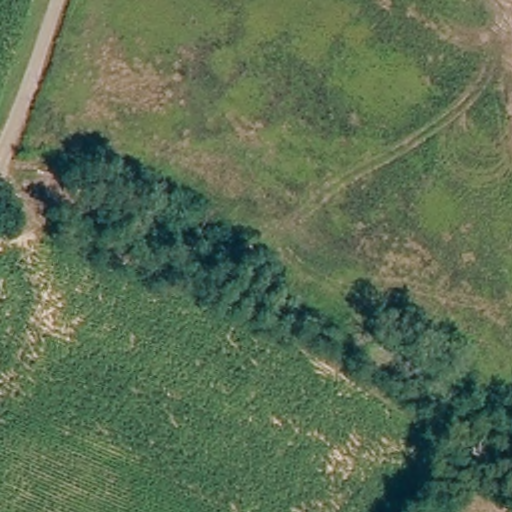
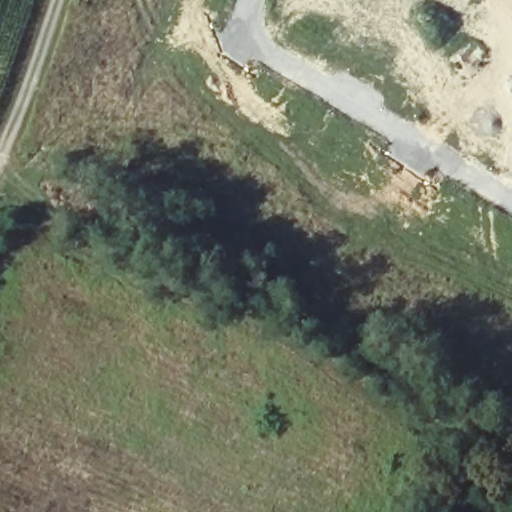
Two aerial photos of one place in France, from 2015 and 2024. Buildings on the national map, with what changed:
[]

